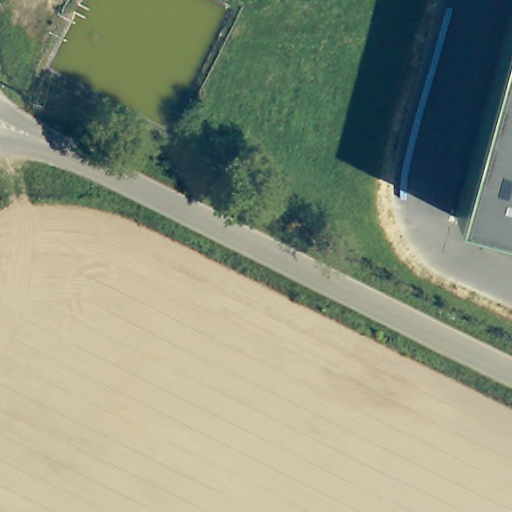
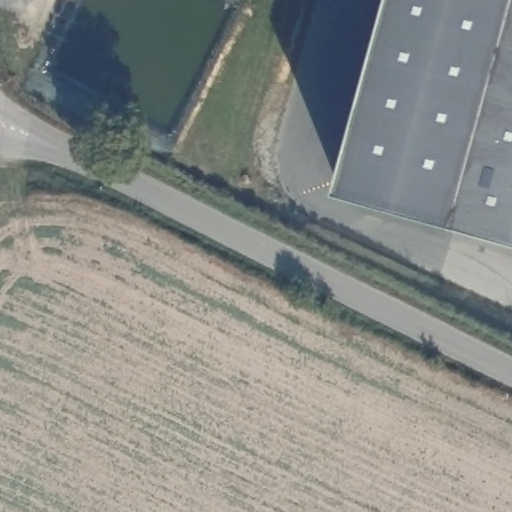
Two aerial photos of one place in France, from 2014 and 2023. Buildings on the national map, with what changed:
new [(390,0),(512,0),(512,231),(340,183),(390,0)]
demolished [(512,34),(512,234),(463,221),(512,34)]

